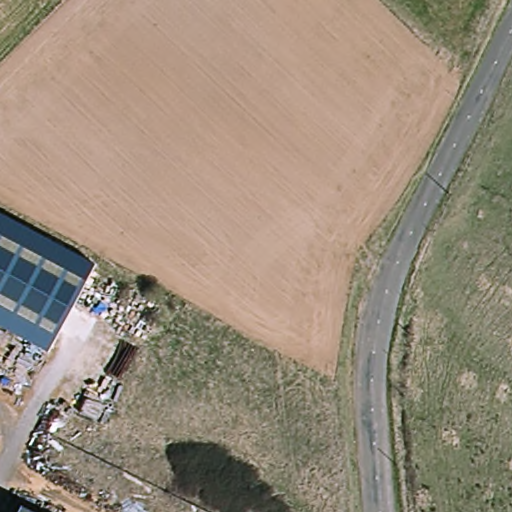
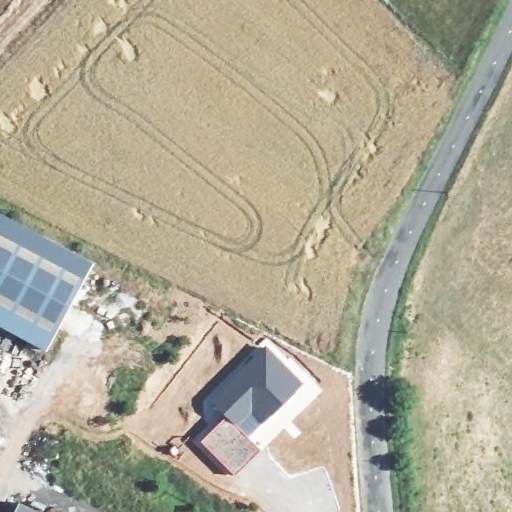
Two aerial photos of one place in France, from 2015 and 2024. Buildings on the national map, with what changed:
unchanged [(40,341),(0,320),(0,208),(90,251),(40,341)]
new [(248,437),(261,450),(235,475),(201,441),(227,415),(210,398),(266,344),(304,383),(248,437)]
unchanged [(34,512),(12,512),(16,503),(34,512)]

